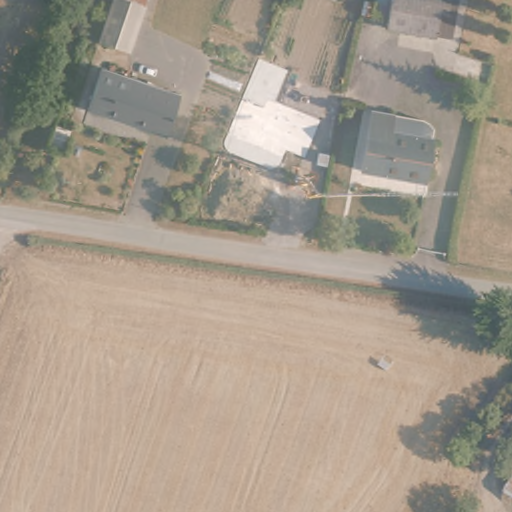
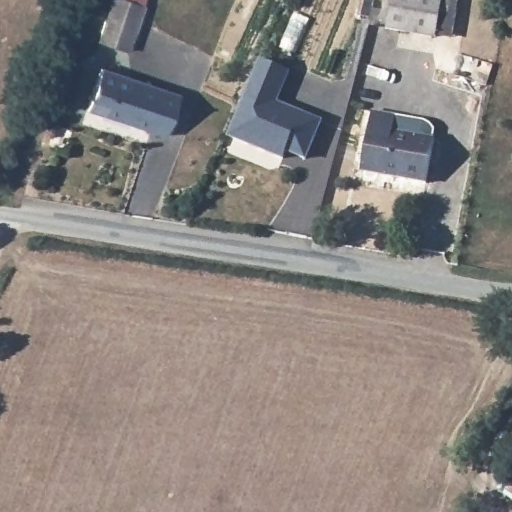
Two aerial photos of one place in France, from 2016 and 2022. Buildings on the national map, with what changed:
unchanged [(132,46),(101,35),(113,0),(149,0),(132,46)]
unchanged [(439,34),(392,26),(396,0),(444,0),(439,34)]
unchanged [(285,151),(281,159),(226,135),(258,58),(292,71),(279,104),(320,121),(306,161),(285,151)]
unchanged [(182,92),(167,135),(87,108),(102,65),(182,92)]
unchanged [(418,119),(428,129),(427,139),(431,139),(425,182),(357,172),(365,112),(418,119)]

